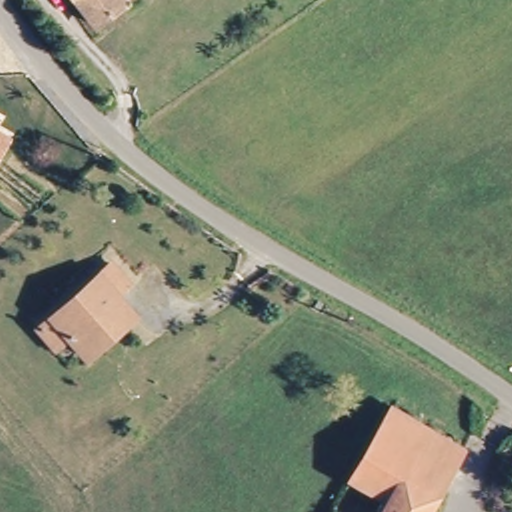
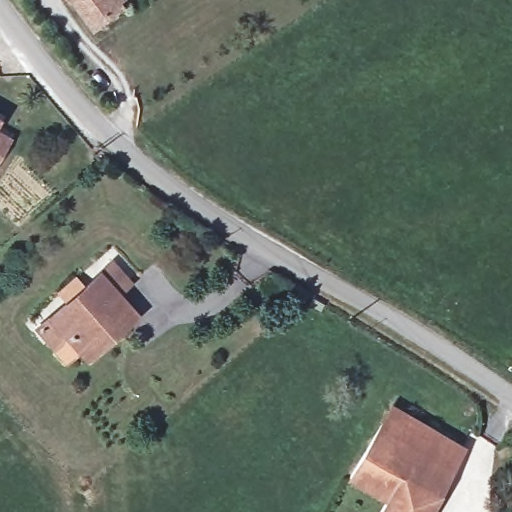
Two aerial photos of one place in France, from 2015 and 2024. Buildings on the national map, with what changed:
unchanged [(122,8),(98,27),(76,2),(76,0),(131,0),(122,8)]
unchanged [(0,121),(0,118),(2,119),(0,121)]
unchanged [(0,157),(0,130),(12,138),(0,157)]
unchanged [(42,330),(54,319),(115,263),(133,283),(119,295),(124,300),(110,314),(116,321),(121,326),(107,340),(89,356),(72,337),(59,348),(42,330)]
unchanged [(360,483),(388,427),(397,411),(467,452),(429,512),(386,512),(392,500),(360,483)]

